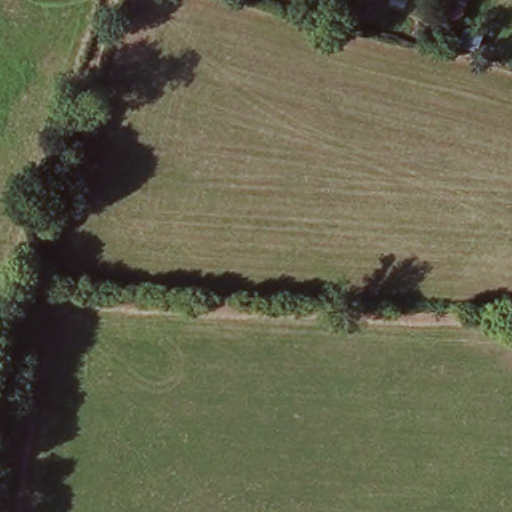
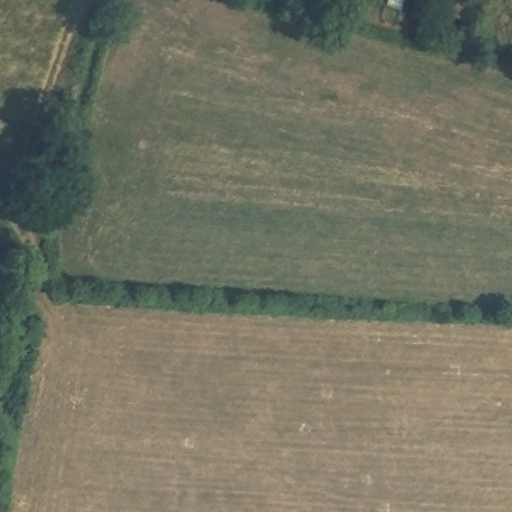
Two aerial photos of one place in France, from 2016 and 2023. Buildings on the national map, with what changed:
unchanged [(330,0),(336,0),(335,2),(330,0)]

